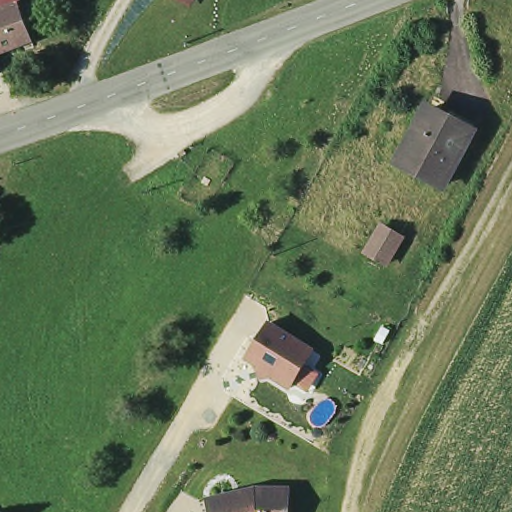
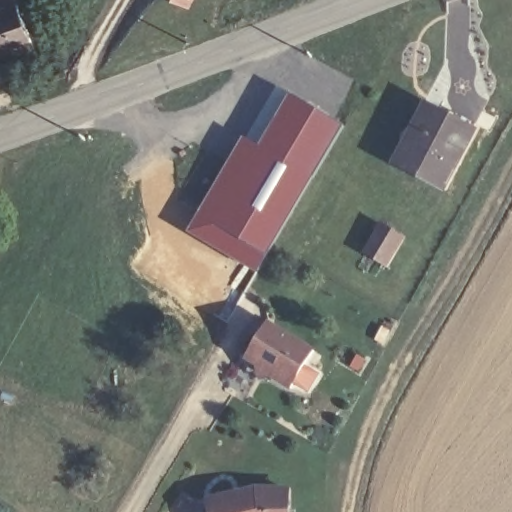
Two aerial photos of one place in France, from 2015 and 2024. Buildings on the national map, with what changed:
unchanged [(176,0),(193,0),(189,7),(176,0)]
unchanged [(0,10),(17,4),(30,36),(31,41),(25,44),(0,53),(0,10)]
new [(275,84),(345,125),(256,273),(185,231),(275,84)]
unchanged [(446,127),(451,120),(475,134),(470,141),(472,142),(440,194),(397,168),(428,116),(446,127)]
unchanged [(366,257),(382,233),(400,245),(385,269),(366,257)]
unchanged [(245,356),(271,322),(314,348),(289,387),(245,356)]
unchanged [(260,492),(293,492),(293,512),(217,512),(215,502),(260,492)]

